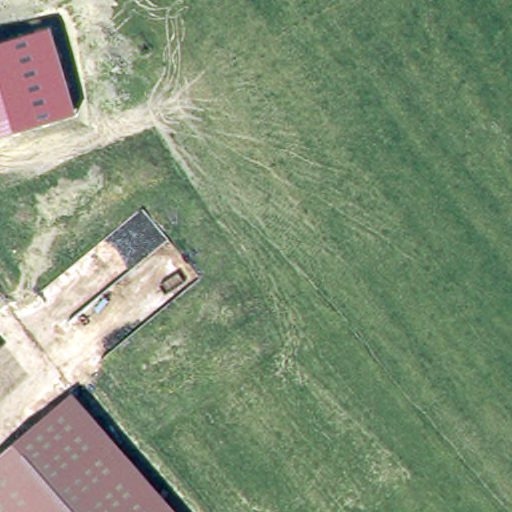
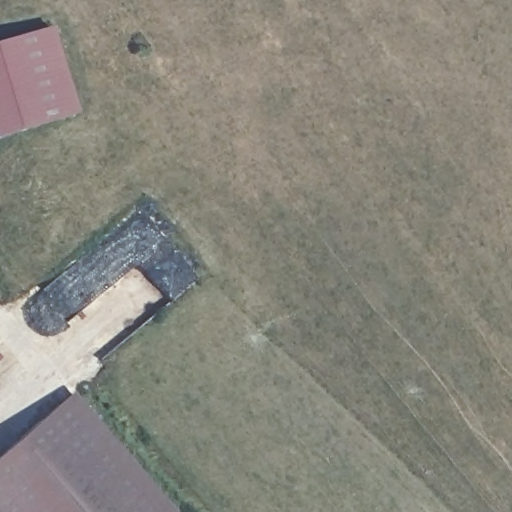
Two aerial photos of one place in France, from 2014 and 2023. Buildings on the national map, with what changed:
unchanged [(50,29),(74,114),(0,137),(0,42),(50,29)]
unchanged [(70,393),(174,512),(0,512),(0,454),(13,443),(55,406),(70,393)]

